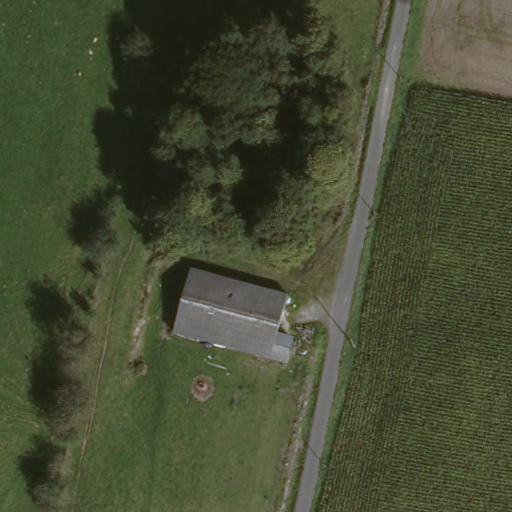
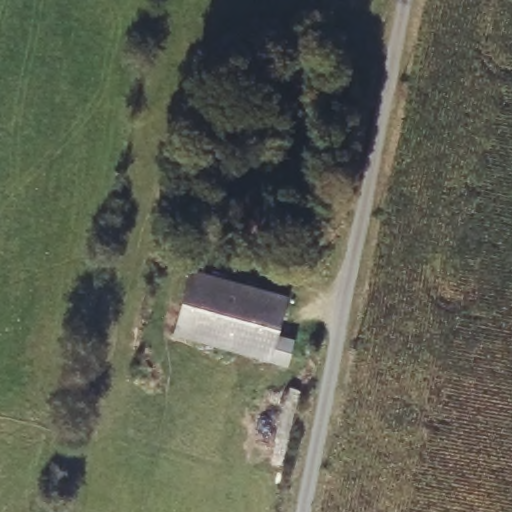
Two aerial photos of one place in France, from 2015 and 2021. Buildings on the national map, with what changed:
unchanged [(296,295),(283,358),(189,332),(203,273),(296,295)]

